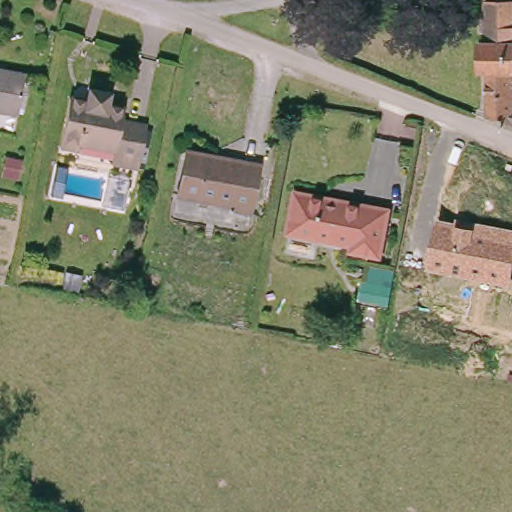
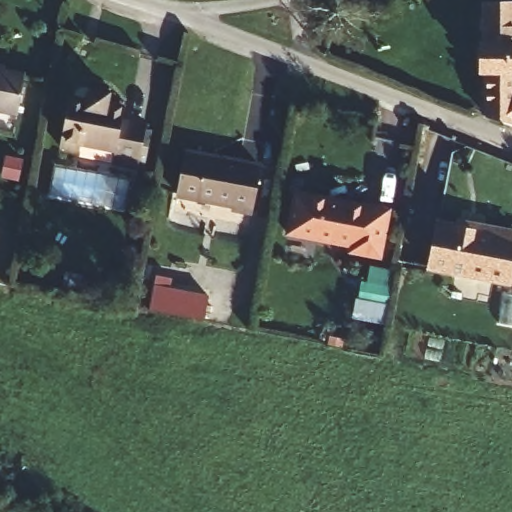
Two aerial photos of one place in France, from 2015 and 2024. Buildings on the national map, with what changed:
unchanged [(482,28),(475,23),(475,17),(482,13),(482,1),(509,1),(509,9),(509,20),(509,40),(510,106),(512,107),(512,122),(487,115),(482,113),(482,69),(475,69),(475,39),(482,39),(482,28)]
unchanged [(28,75),(22,115),(0,111),(0,70),(28,75)]
unchanged [(90,97),(92,83),(121,88),(119,100),(130,102),(128,118),(149,121),(142,164),(115,159),(117,140),(85,135),(83,145),(62,141),(70,94),(90,97)]
unchanged [(233,209),(235,202),(175,192),(182,150),(257,163),(250,205),(250,212),(233,209)]
unchanged [(387,205),(380,255),(347,249),(347,242),(285,230),(292,188),(387,205)]
unchanged [(512,275),(510,288),(427,272),(437,219),(455,223),(457,218),(512,229),(512,275)]
unchanged [(395,266),(388,307),(358,302),(368,262),(395,266)]
new [(208,295),(203,321),(149,310),(156,275),(172,278),(170,288),(208,295)]

